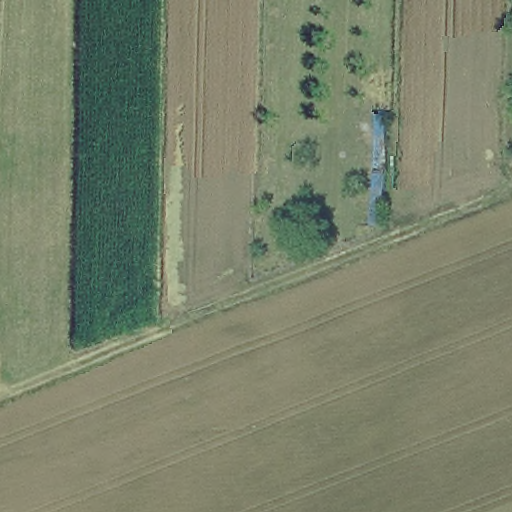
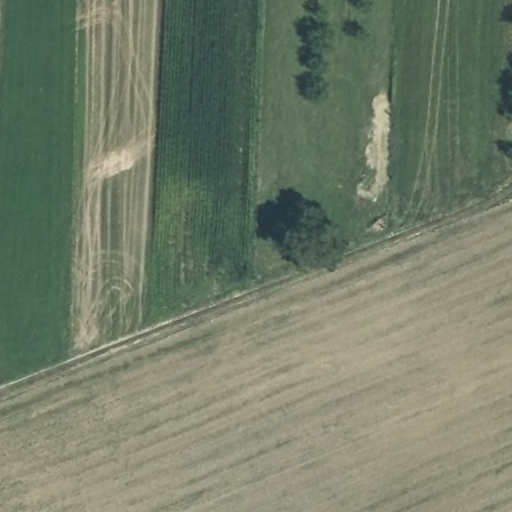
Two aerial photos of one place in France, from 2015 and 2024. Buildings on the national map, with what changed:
unchanged [(394,71),(391,177),(375,177),(374,69),(394,71)]

